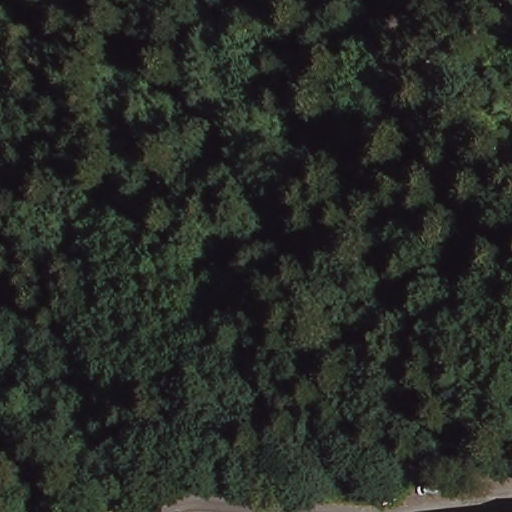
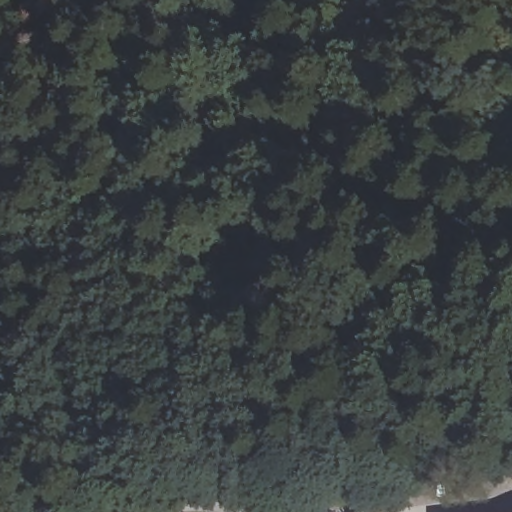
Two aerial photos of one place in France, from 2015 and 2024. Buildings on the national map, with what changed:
[]

